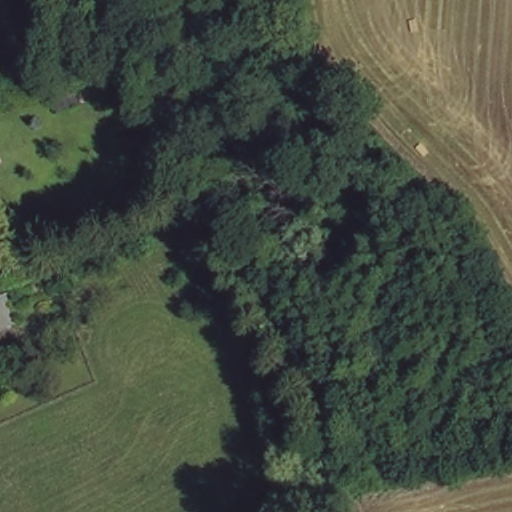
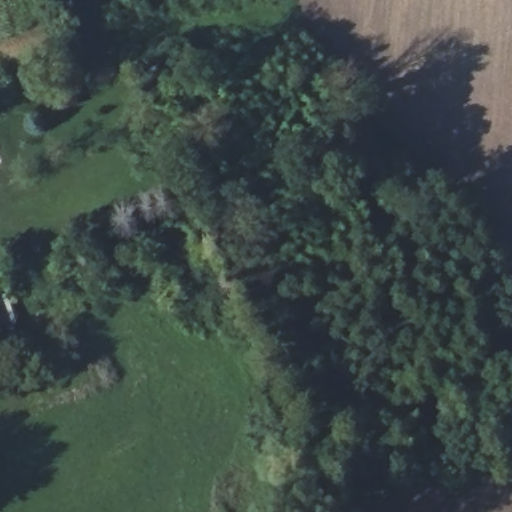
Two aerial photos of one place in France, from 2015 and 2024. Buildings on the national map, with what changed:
unchanged [(0,328),(0,287),(4,286),(16,321),(0,328)]
unchanged [(0,342),(0,339),(1,342),(0,342)]

